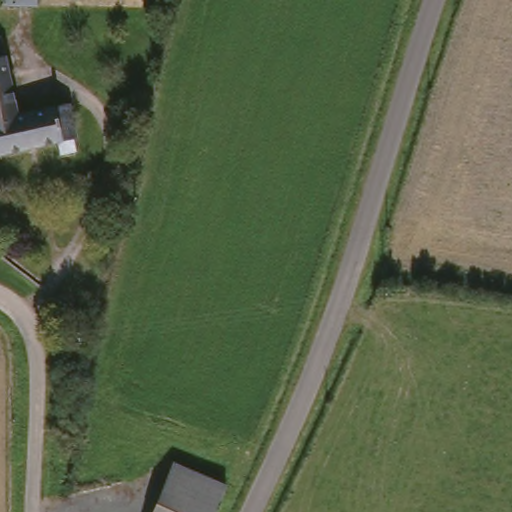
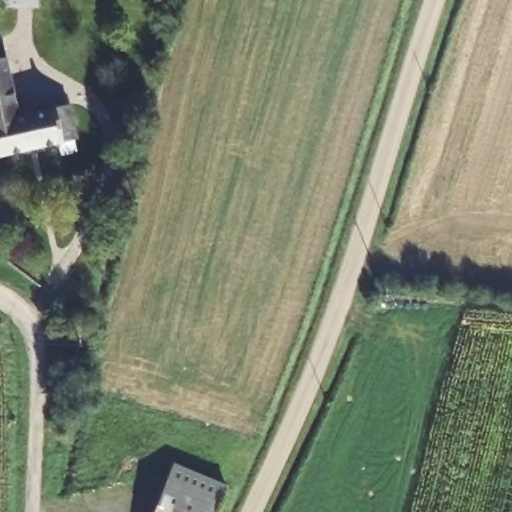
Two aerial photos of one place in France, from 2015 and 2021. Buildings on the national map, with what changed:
unchanged [(7,5),(7,0),(39,0),(38,8),(7,5)]
unchanged [(72,152),(57,155),(54,146),(0,160),(0,78),(11,117),(66,106),(75,140),(71,145),(72,152)]
unchanged [(152,510),(171,464),(225,485),(213,512),(152,512),(152,510)]

